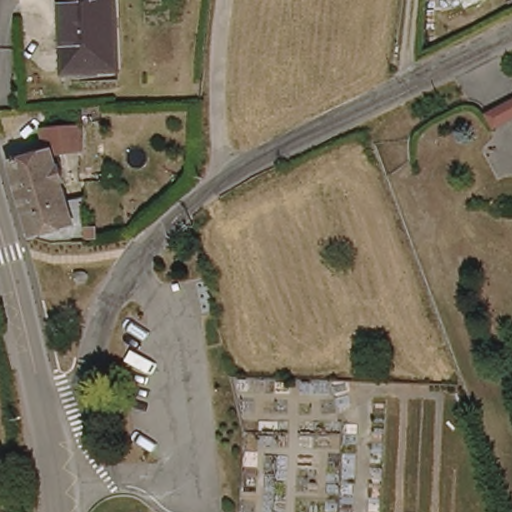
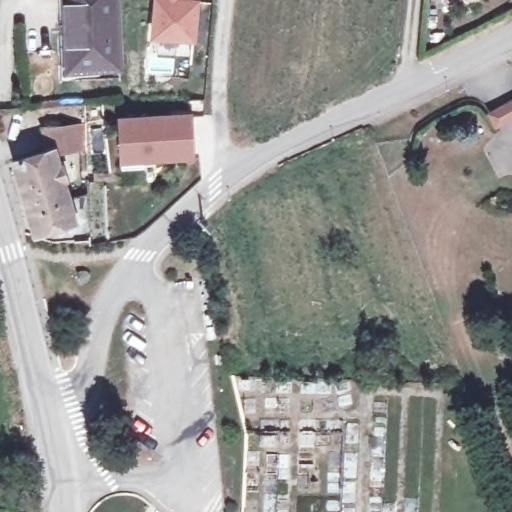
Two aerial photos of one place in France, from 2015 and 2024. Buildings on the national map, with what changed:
unchanged [(69,75),(67,0),(117,0),(120,74),(69,75)]
new [(201,0),(196,43),(149,38),(152,0),(201,0)]
new [(123,163),(120,163),(117,117),(192,113),(194,161),(144,163),(144,167),(122,169),(123,163)]
unchanged [(20,159),(48,153),(45,128),(80,122),(82,145),(61,150),(76,223),(35,233),(20,159)]
new [(147,172),(147,184),(124,185),(123,172),(147,172)]
demolished [(83,281),(87,283),(88,286),(87,290),(85,292),(78,295),(75,284),(83,281)]

